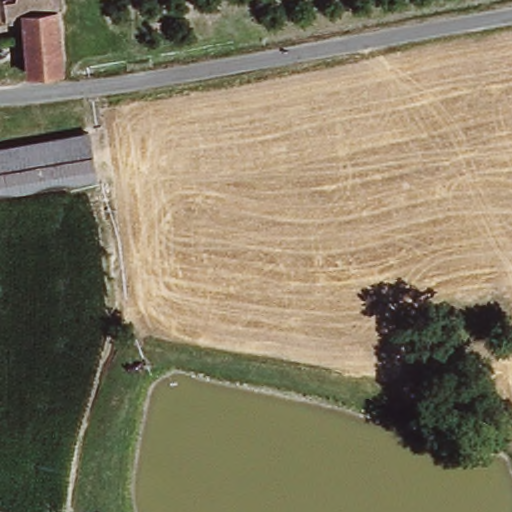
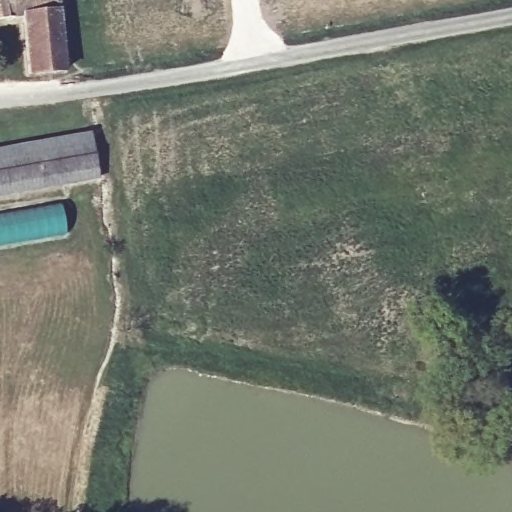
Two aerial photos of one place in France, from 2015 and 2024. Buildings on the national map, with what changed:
unchanged [(64,59),(64,67),(29,75),(26,20),(0,22),(0,0),(61,0),(64,59)]
unchanged [(0,197),(0,152),(94,140),(100,185),(0,197)]
new [(62,225),(56,225),(58,236),(0,245),(0,215),(59,205),(62,225)]

